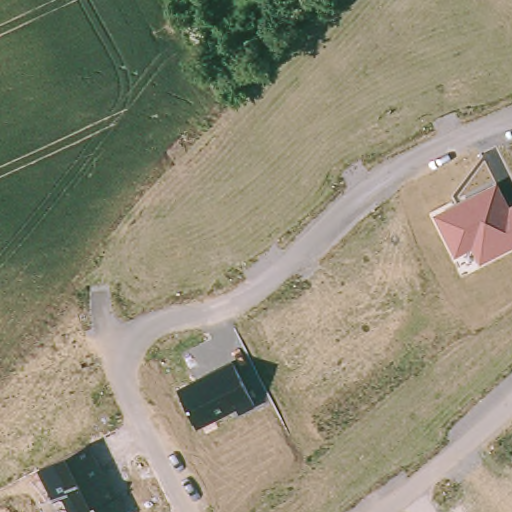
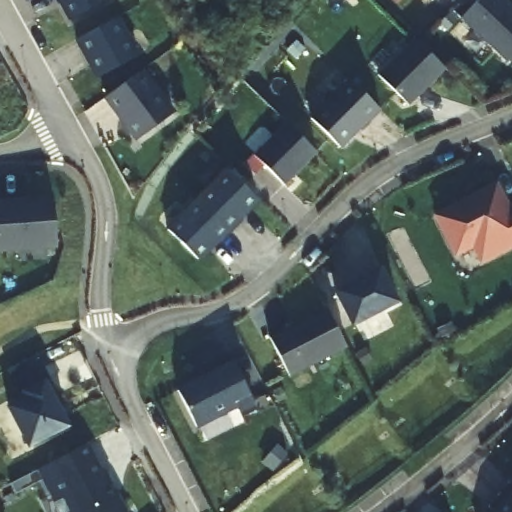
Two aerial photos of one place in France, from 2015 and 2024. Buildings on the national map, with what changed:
new [(59,0),(105,0),(69,19),(59,0)]
new [(501,0),(512,11),(512,58),(507,64),(461,20),(480,0),(501,0)]
new [(141,56),(100,79),(79,40),(120,18),(141,56)]
new [(414,40),(445,70),(409,107),(378,76),(414,40)]
new [(176,111),(136,141),(104,97),(145,69),(176,111)]
new [(349,80),(380,111),(360,131),(359,130),(340,149),(311,119),(349,80)]
unchanged [(289,121),(321,151),(288,182),(256,151),(289,121)]
new [(204,258),(169,223),(223,167),(259,200),(204,258)]
unchanged [(512,204),(512,247),(480,264),(472,248),(455,257),(433,214),(497,181),(510,205),(512,204)]
new [(54,197),(58,249),(0,252),(0,201),(54,197)]
new [(379,269),(397,302),(353,325),(336,292),(379,269)]
new [(328,310),(348,348),(291,377),(271,339),(328,310)]
unchanged [(256,404),(241,412),(238,407),(197,428),(176,388),(233,359),(256,404)]
new [(64,428),(30,446),(10,407),(28,398),(25,393),(52,379),(66,406),(61,409),(69,426),(64,428)]
unchanged [(89,442),(123,512),(70,512),(63,497),(54,501),(38,468),(89,442)]
new [(512,488),(512,505),(504,499),(512,488)]
new [(504,499),(512,505),(512,512),(492,512),(504,499)]

